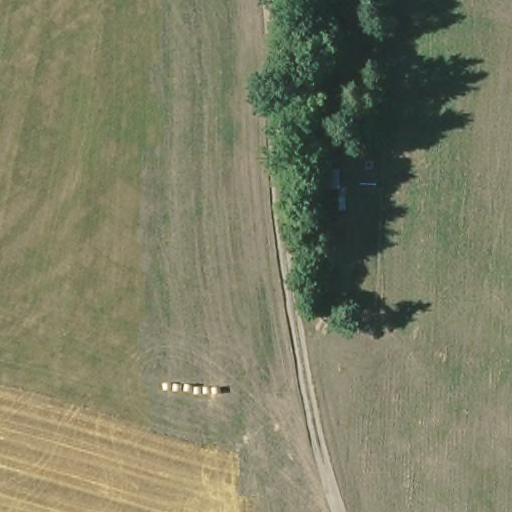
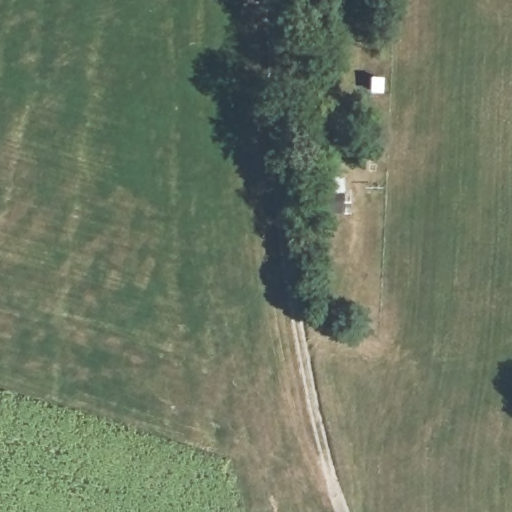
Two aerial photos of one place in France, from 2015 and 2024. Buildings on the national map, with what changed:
unchanged [(333,213),(332,190),(354,187),(357,211),(333,213)]

